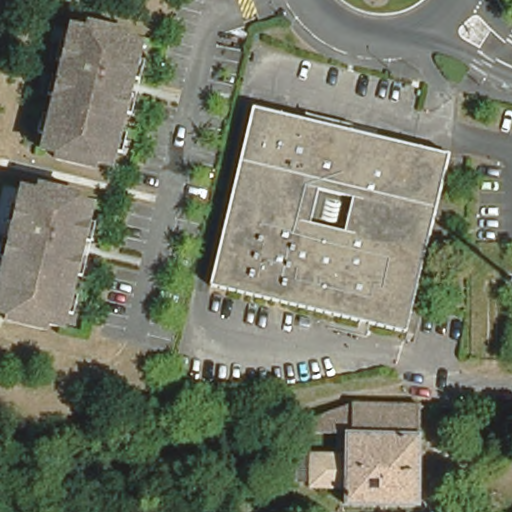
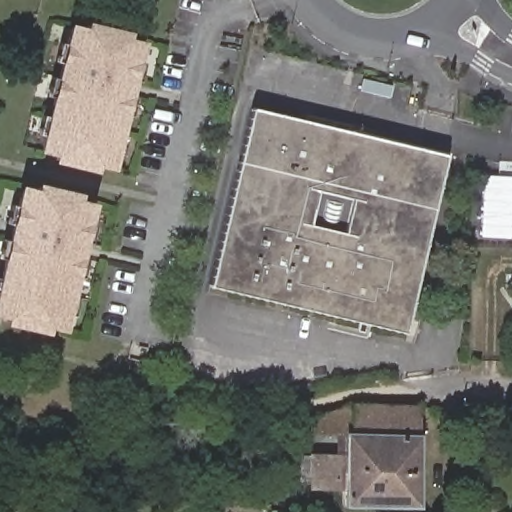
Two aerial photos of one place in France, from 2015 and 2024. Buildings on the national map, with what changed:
unchanged [(77,24),(84,26),(85,20),(125,29),(124,35),(137,38),(109,161),(92,157),(91,163),(54,154),(55,148),(48,147),(39,145),(69,22),(77,24)]
unchanged [(452,157),(407,335),(212,287),(256,110),(452,157)]
new [(481,175),(512,176),(512,238),(480,237),(481,175)]
unchanged [(40,187),(41,182),(44,183),(81,191),(80,197),(95,200),(65,323),(49,319),(47,325),(10,316),(11,311),(0,308),(0,286),(25,184),(40,187)]
unchanged [(353,405),(361,405),(418,405),(417,507),(346,505),(346,490),(311,489),(311,456),(347,457),(347,435),(303,434),(302,424),(353,405)]

